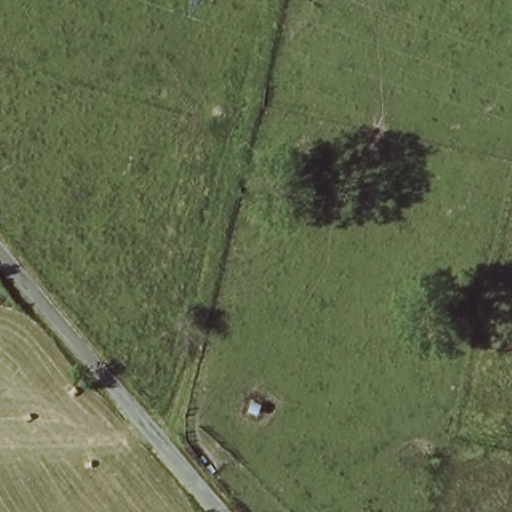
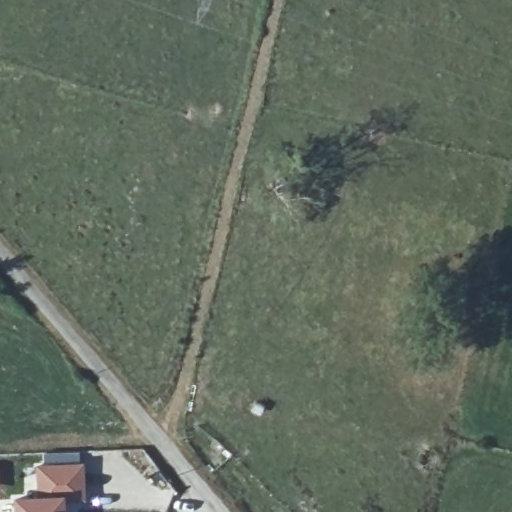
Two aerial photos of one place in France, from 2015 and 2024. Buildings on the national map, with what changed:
new [(36,496),(35,465),(83,463),(85,501),(64,502),(64,512),(13,512),(13,498),(36,496)]

